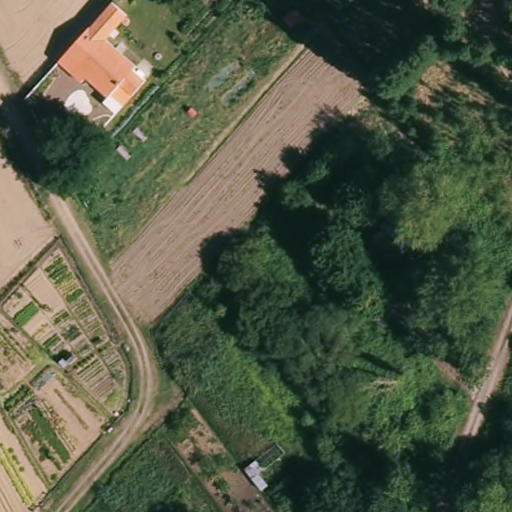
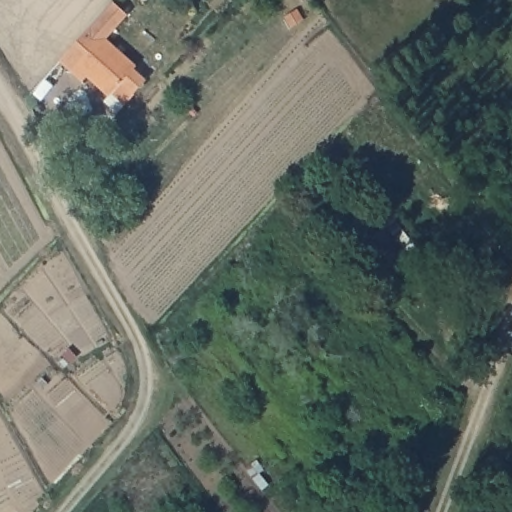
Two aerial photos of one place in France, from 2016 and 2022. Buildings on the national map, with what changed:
unchanged [(123,120),(110,109),(115,104),(92,84),(88,89),(75,78),(64,68),(79,52),(103,25),(117,9),(132,22),(111,46),(142,73),(139,77),(152,89),(138,103),(127,115),(123,120)]
unchanged [(393,216),(416,248),(393,271),(372,235),(393,216)]

